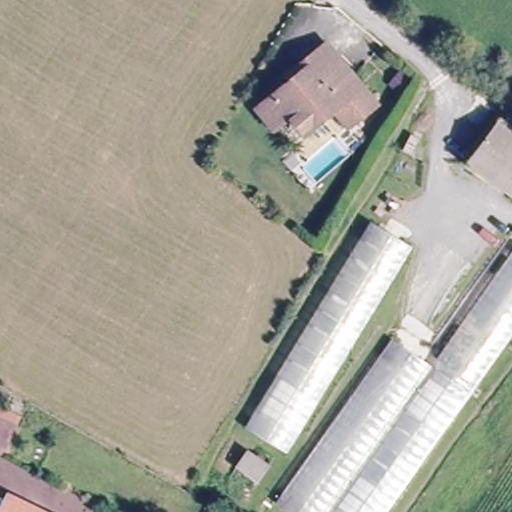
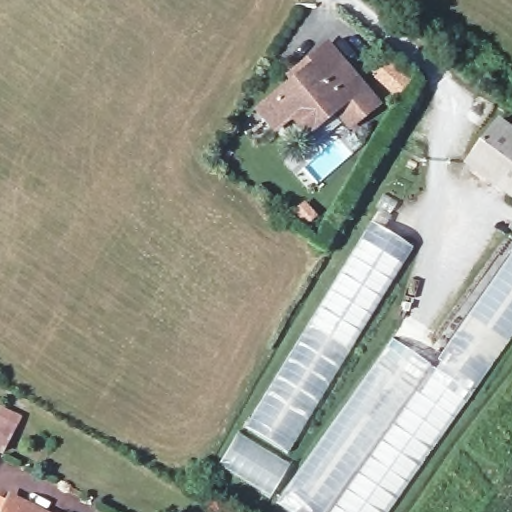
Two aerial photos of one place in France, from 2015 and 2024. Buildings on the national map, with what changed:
unchanged [(255,122),(271,105),(289,87),(283,80),(318,44),(372,101),(348,127),(332,113),(308,139),(292,124),(275,143),(255,122)]
unchanged [(468,159),(501,115),(512,123),(512,192),(468,159)]
unchanged [(377,223),(417,248),(287,451),(246,425),(377,223)]
unchanged [(390,512),(297,512),(280,501),(396,337),(435,364),(512,256),(512,341),(390,512)]
unchanged [(0,437),(0,400),(14,374),(32,385),(4,439),(0,437)]
unchanged [(37,512),(6,512),(12,499),(37,512)]

